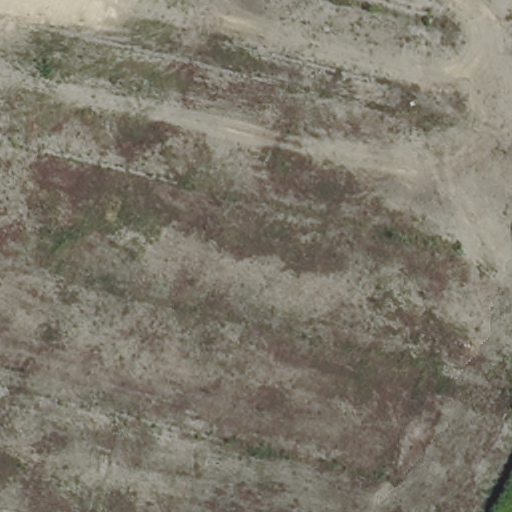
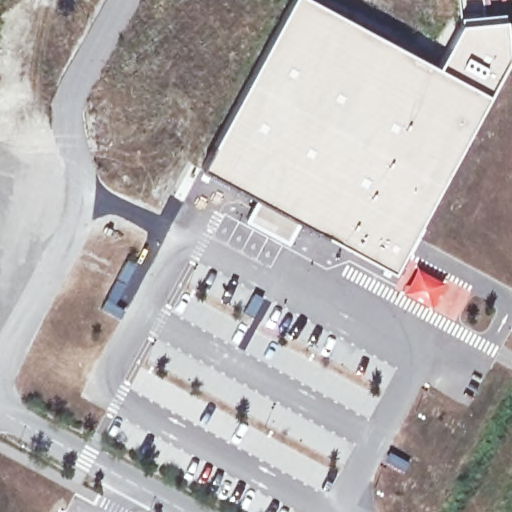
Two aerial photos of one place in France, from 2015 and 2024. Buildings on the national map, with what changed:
new [(428,73),(450,24),(512,21),(512,94),(386,291),(303,239),(286,258),(231,233),(248,202),(195,178),(289,0),(309,0),(428,73)]

